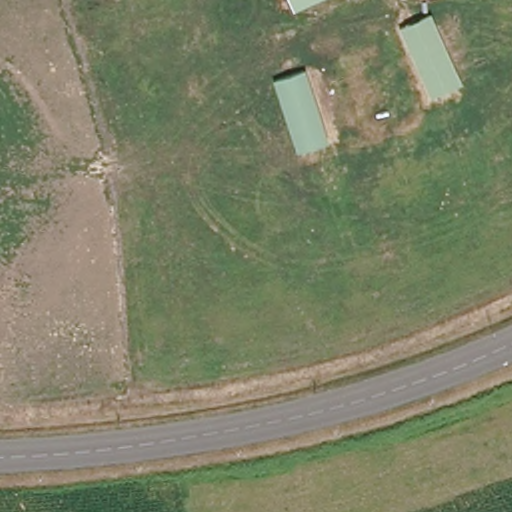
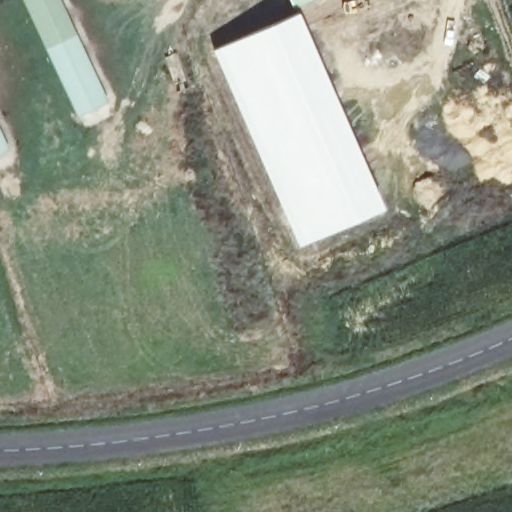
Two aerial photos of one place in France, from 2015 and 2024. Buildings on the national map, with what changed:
new [(107,101),(77,115),(24,0),(60,0),(107,101)]
unchanged [(290,0),(313,0),(293,9),(290,0)]
new [(298,10),(384,207),(297,245),(210,47),(298,10)]
demolished [(191,69),(227,66),(234,142),(197,145),(191,69)]
demolished [(345,74),(380,66),(396,139),(362,148),(345,74)]
new [(7,149),(0,153),(0,133),(7,149)]

